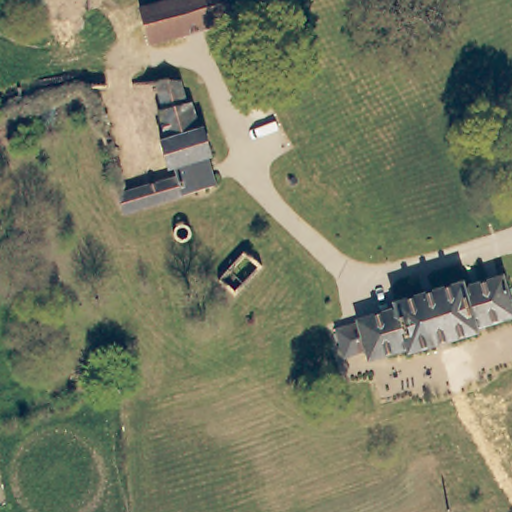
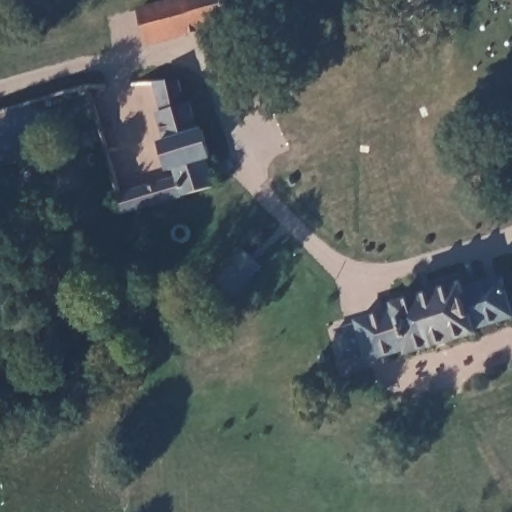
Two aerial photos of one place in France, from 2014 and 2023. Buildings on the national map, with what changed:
unchanged [(227,22),(144,46),(134,11),(176,0),(221,0),(227,22)]
unchanged [(185,107),(190,105),(198,133),(202,132),(211,160),(206,161),(214,188),(122,215),(117,197),(174,180),(172,171),(166,173),(160,145),(166,143),(158,114),(163,113),(157,90),(179,84),(185,107)]
unchanged [(195,228),(198,233),(197,239),(192,243),(186,241),(183,236),(184,230),(189,227),(195,228)]
unchanged [(261,268),(235,298),(218,282),(244,253),(261,268)]
unchanged [(358,326),(357,324),(396,312),(394,307),(462,286),(463,291),(502,280),(512,313),(512,319),(475,330),(476,335),(409,356),(408,352),(369,363),(366,353),(344,360),(336,332),(358,326)]

